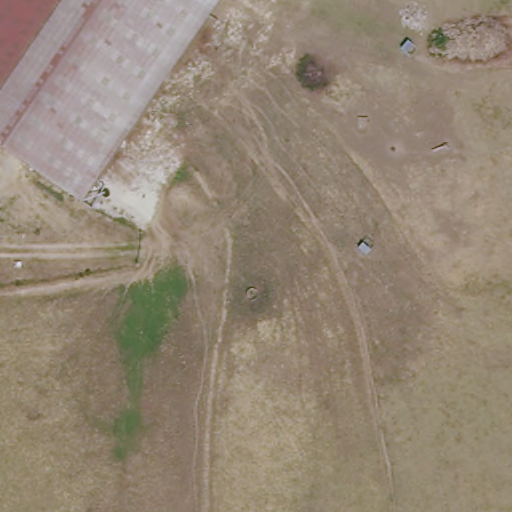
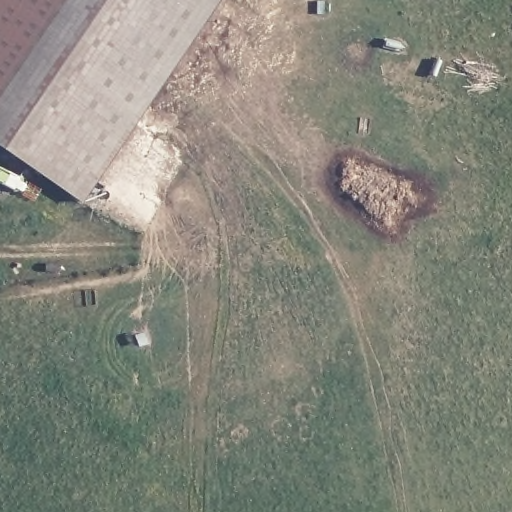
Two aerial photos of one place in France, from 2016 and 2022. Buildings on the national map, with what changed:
unchanged [(0,0),(72,0),(0,106),(0,0)]
unchanged [(75,195),(0,143),(0,106),(72,0),(207,0),(75,195)]

